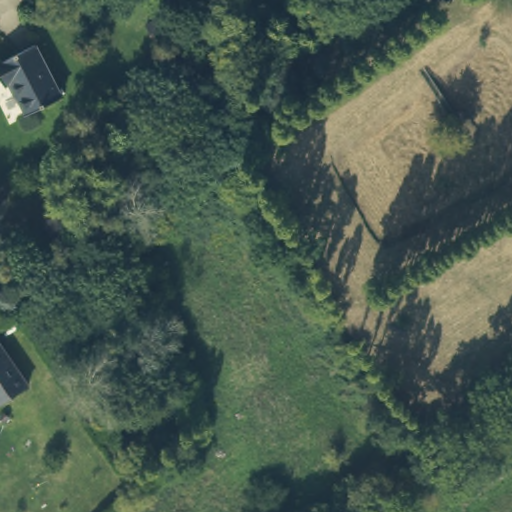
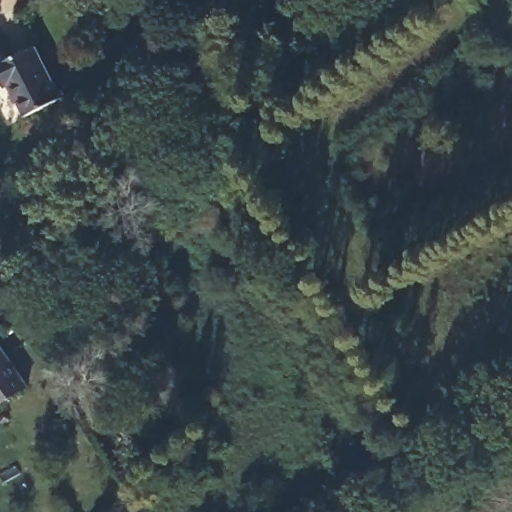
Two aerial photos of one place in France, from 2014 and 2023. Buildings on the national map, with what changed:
unchanged [(63,92),(28,112),(11,80),(6,83),(0,70),(0,63),(33,42),(63,92)]
unchanged [(1,327),(0,327),(0,313),(11,329),(1,327)]
unchanged [(0,337),(25,377),(30,386),(3,402),(0,405),(0,337)]

